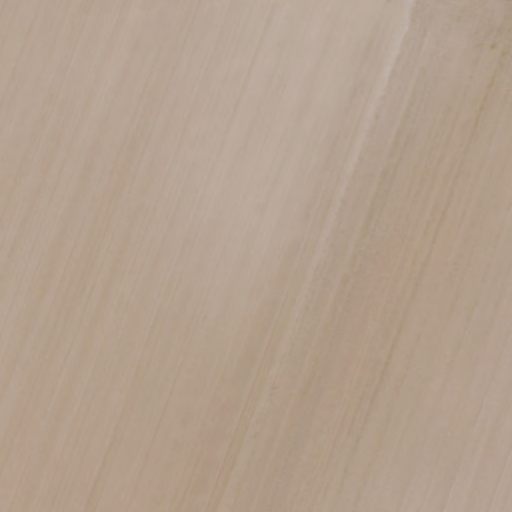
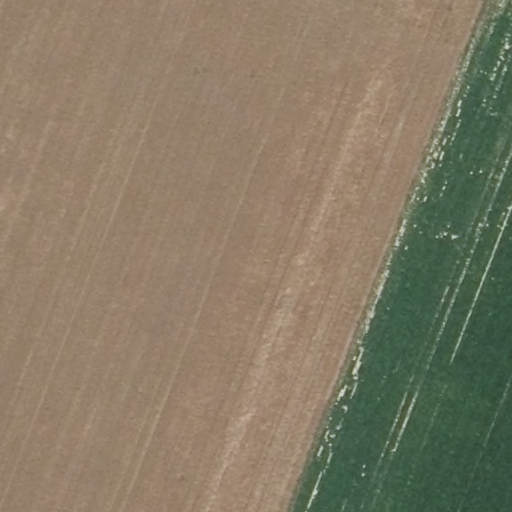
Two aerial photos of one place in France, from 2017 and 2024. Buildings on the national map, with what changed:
[]

